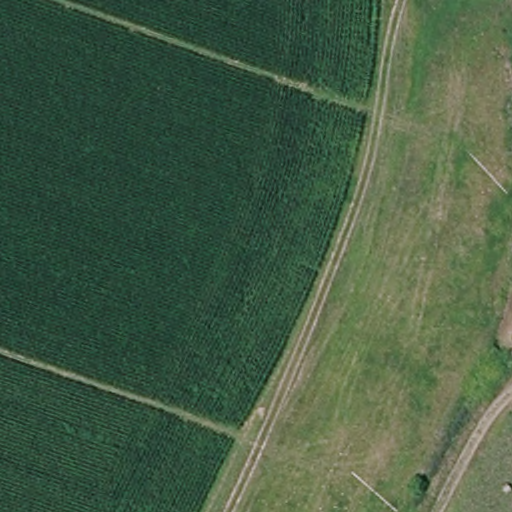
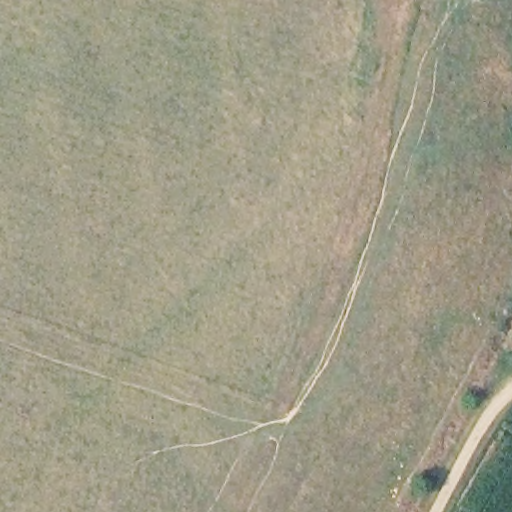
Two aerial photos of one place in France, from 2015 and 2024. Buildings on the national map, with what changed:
[]

